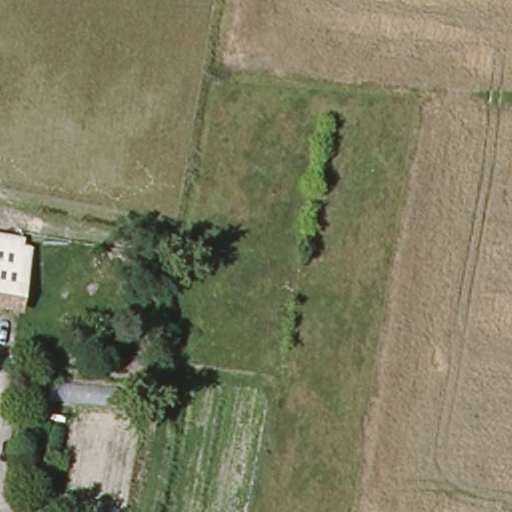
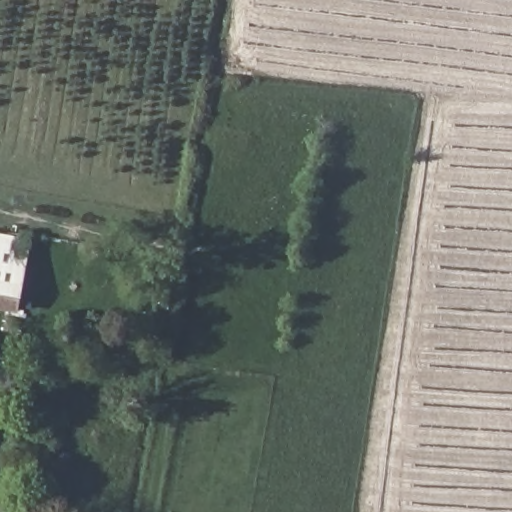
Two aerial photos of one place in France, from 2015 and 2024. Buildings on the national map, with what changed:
unchanged [(14,307),(0,305),(0,235),(24,239),(14,307)]
unchanged [(21,502),(50,506),(49,512),(20,512),(21,502)]

